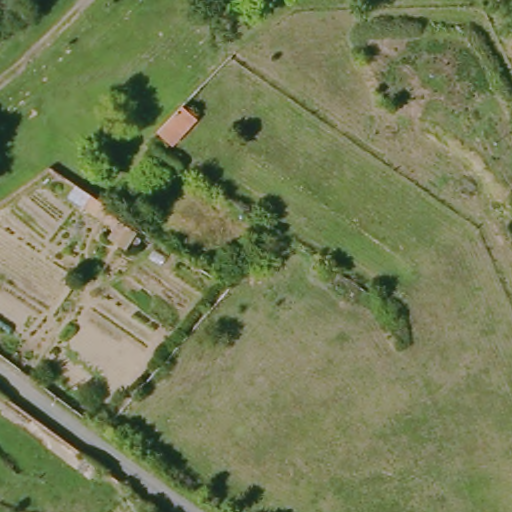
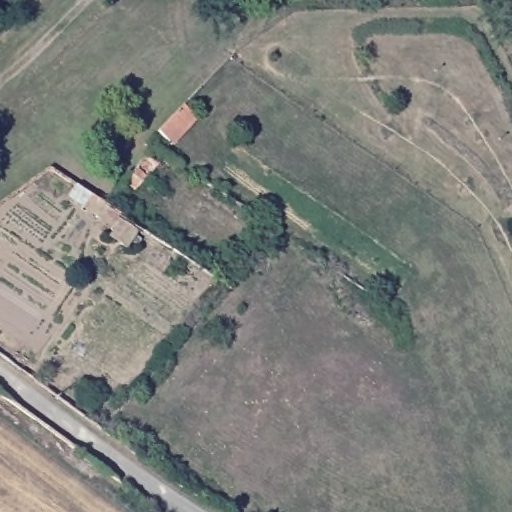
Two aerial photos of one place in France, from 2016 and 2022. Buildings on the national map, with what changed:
unchanged [(160,137),(171,126),(183,112),(197,125),(185,138),(174,150),(160,137)]
unchanged [(139,236),(125,256),(105,244),(111,232),(61,200),(74,187),(139,236)]

